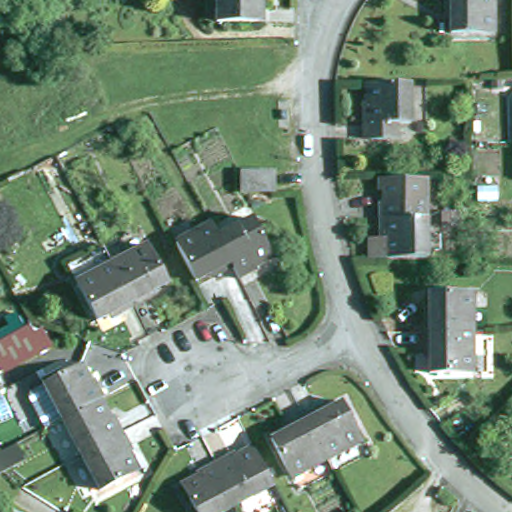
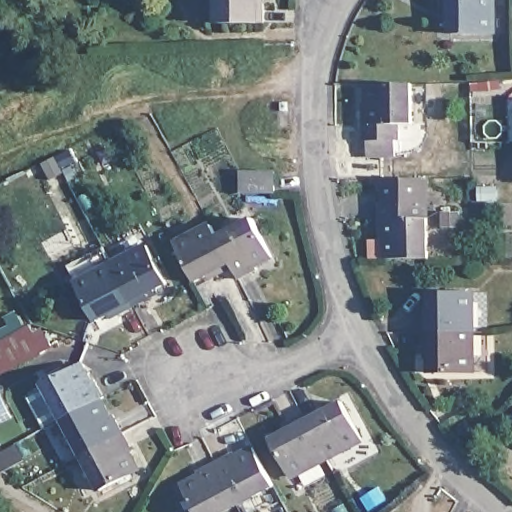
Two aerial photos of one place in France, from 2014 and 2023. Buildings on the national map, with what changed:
unchanged [(264,19),(216,19),(216,0),(264,0),(264,19)]
unchanged [(446,0),(494,0),(493,34),(450,33),(451,20),(446,20),(446,14),(446,0)]
unchanged [(399,120),(399,134),(364,134),(364,100),(368,100),(368,79),(411,79),(410,120),(399,120)]
unchanged [(279,102),(289,102),(290,128),(279,128),(279,102)]
unchanged [(472,151),(472,145),(491,145),(491,151),(472,151)]
unchanged [(276,193),(241,193),(241,170),(276,171),(276,193)]
unchanged [(474,177),(499,176),(499,201),(474,202),(474,177)]
unchanged [(372,260),(372,240),(380,240),(379,205),(384,205),(384,177),(417,177),(426,177),(427,260),(372,260)]
unchanged [(258,266),(240,276),(233,263),(218,233),(253,215),(273,252),(256,261),(258,266)]
unchanged [(196,277),(176,239),(211,220),(218,233),(233,263),(216,273),(211,276),(208,270),(196,277)]
unchanged [(153,300),(136,309),(113,266),(146,248),(166,284),(155,290),(158,297),(153,300)]
unchanged [(108,315),(98,321),(78,284),(113,266),(136,309),(118,319),(111,323),(108,315)]
unchanged [(424,307),(430,307),(430,295),(473,294),(473,334),(424,334),(424,314),(424,307)]
unchanged [(431,372),(431,359),(424,358),(424,334),(473,334),(474,372),(431,372)]
unchanged [(1,377),(0,374),(0,351),(21,339),(26,347),(34,342),(42,355),(1,377)]
unchanged [(105,394),(59,418),(43,427),(28,399),(29,393),(88,362),(96,378),(100,376),(109,392),(105,394)]
unchanged [(105,394),(115,413),(119,411),(129,430),(80,457),(69,436),(59,418),(105,394)]
unchanged [(361,441),(326,460),(303,417),(321,407),(326,404),(329,410),(339,404),(361,441)]
unchanged [(273,440),(283,435),(280,430),(286,426),(303,417),(326,460),(293,478),(273,440)]
unchanged [(138,446),(135,448),(143,465),(98,489),(80,457),(129,430),(138,446)]
unchanged [(220,459),(240,449),(243,453),(257,445),(277,482),(242,501),(220,459)]
unchanged [(205,512),(189,483),(206,474),(203,468),(220,459),(242,501),(222,512),(205,512)]

